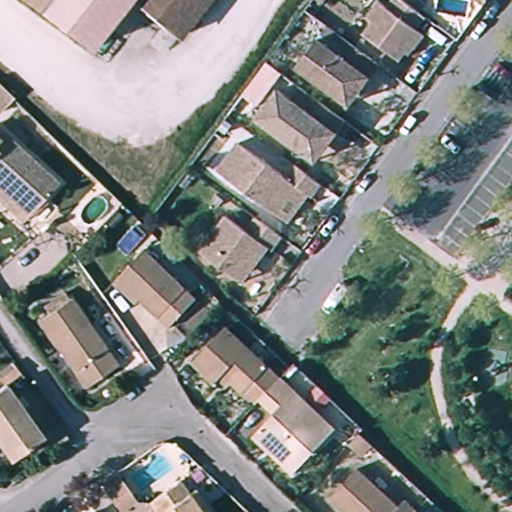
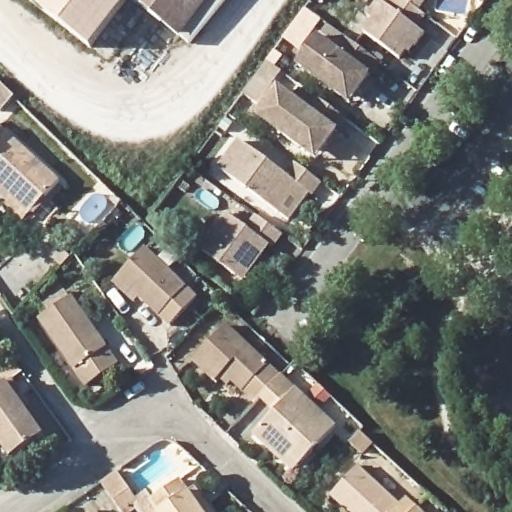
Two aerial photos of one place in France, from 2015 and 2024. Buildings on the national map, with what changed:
unchanged [(25,0),(129,0),(89,51),(25,0)]
unchanged [(148,0),(207,0),(186,28),(148,0)]
unchanged [(417,30),(424,35),(411,54),(406,50),(401,58),(364,32),(371,21),(368,19),(379,3),(387,8),(392,0),(403,0),(426,16),(417,30)]
unchanged [(346,99),(301,66),(331,24),(348,37),(360,45),(384,64),(374,78),(354,105),(346,99)]
unchanged [(2,119),(0,118),(0,80),(19,99),(2,119)]
unchanged [(305,150),(259,116),(279,89),(291,98),(299,85),(344,119),(335,133),(316,159),(305,150)]
unchanged [(30,236),(0,206),(0,141),(6,135),(68,196),(30,236)]
unchanged [(286,174),(294,163),(323,184),(314,196),(309,193),(290,219),(218,167),(238,139),(286,174)]
unchanged [(235,274),(200,248),(226,214),(246,229),(256,215),(281,234),(272,248),(268,245),(258,259),(243,279),(235,274)]
unchanged [(191,302),(165,328),(114,279),(141,252),(191,302)]
unchanged [(121,370),(92,393),(45,324),(76,302),(121,370)]
unchanged [(264,396),(256,404),(226,376),(214,387),(191,364),(225,328),(279,380),(264,396)]
unchanged [(0,453),(0,399),(3,397),(0,393),(0,380),(11,372),(20,384),(8,393),(42,444),(10,468),(0,453)]
unchanged [(279,380),(288,372),(339,423),(298,466),(263,433),(281,413),(264,396),(279,380)]
unchanged [(324,501),(350,474),(388,509),(397,501),(408,512),(335,512),(324,501)]
unchanged [(159,512),(135,512),(123,494),(138,482),(159,512)]
unchanged [(200,504),(208,499),(216,512),(167,512),(166,511),(192,493),(200,504)]
unchanged [(413,511),(414,512),(412,512),(413,511)]

